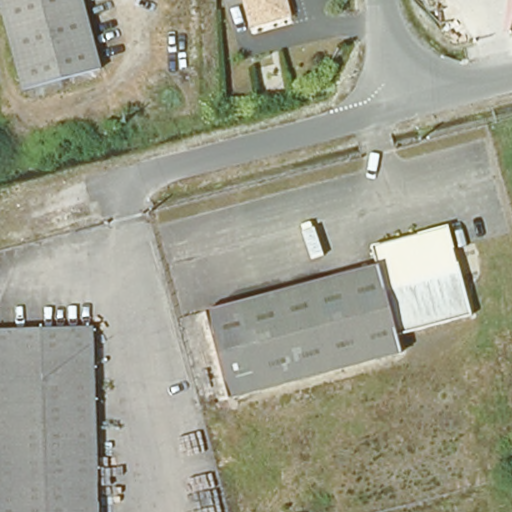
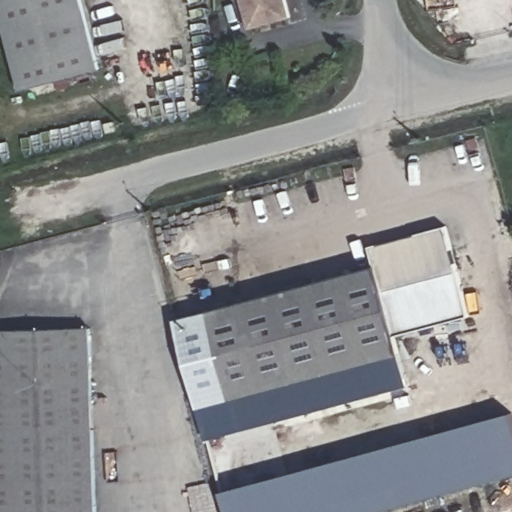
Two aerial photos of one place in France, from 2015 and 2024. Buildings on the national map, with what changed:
unchanged [(30,102),(6,0),(76,0),(96,85),(30,102)]
unchanged [(253,31),(243,0),(289,0),(295,18),(253,31)]
unchanged [(447,227),(470,318),(447,325),(423,234),(447,227)]
unchanged [(447,325),(398,337),(402,353),(230,396),(207,308),(378,266),(374,247),(423,234),(447,325)]
new [(206,440),(176,319),(207,311),(230,396),(402,353),(408,386),(206,440)]
unchanged [(92,330),(96,512),(0,512),(0,331),(92,330)]
new [(512,475),(377,512),(228,512),(223,492),(512,413),(512,475)]

